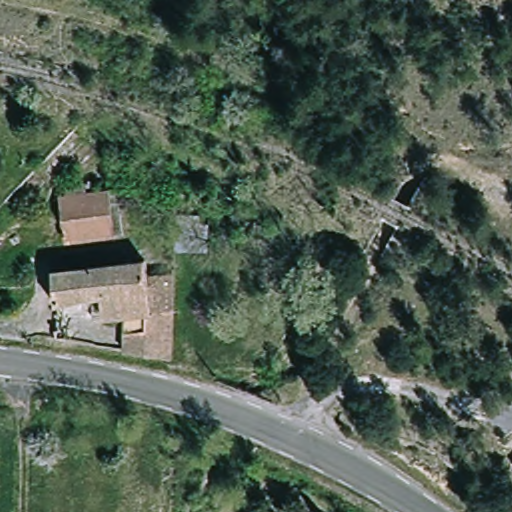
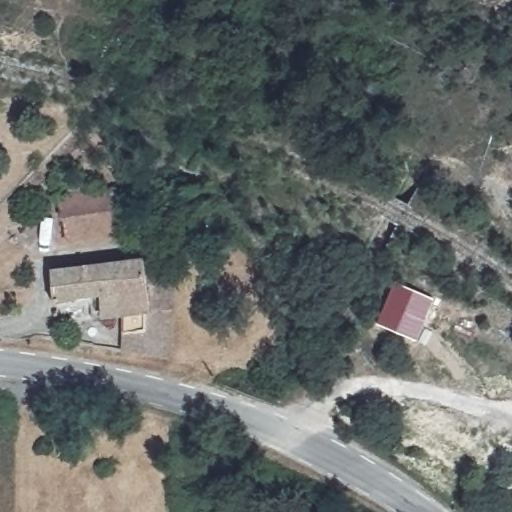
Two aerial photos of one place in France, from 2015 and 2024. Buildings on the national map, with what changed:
unchanged [(57,196),(112,187),(119,230),(64,239),(57,196)]
unchanged [(177,218),(206,216),(207,256),(178,252),(177,218)]
unchanged [(111,319),(111,295),(57,300),(57,283),(56,272),(145,257),(147,273),(176,275),(175,320),(125,319),(111,319)]
new [(416,341),(377,325),(395,282),(434,299),(416,341)]
unchanged [(175,320),(173,357),(124,349),(125,319),(175,320)]

